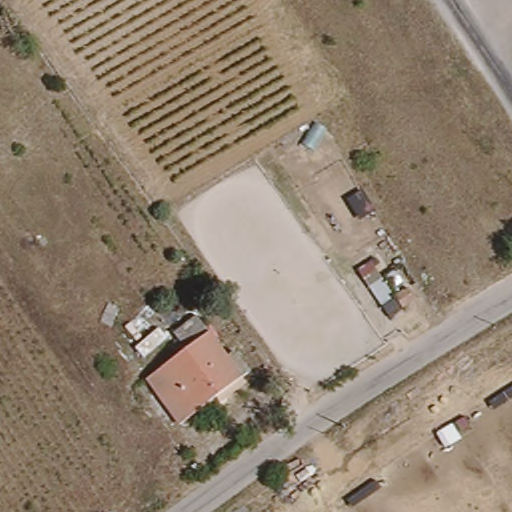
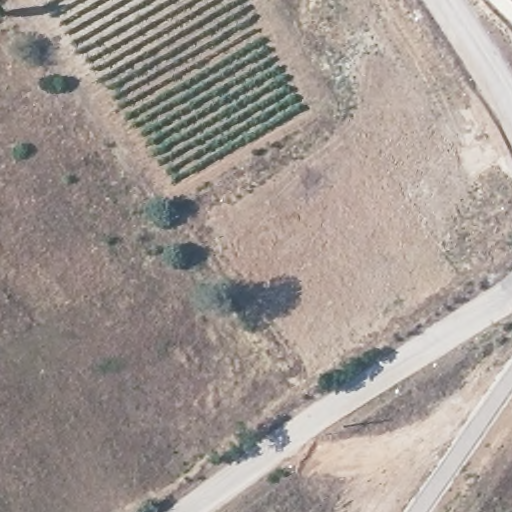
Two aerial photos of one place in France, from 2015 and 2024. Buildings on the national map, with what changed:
demolished [(421,301),(405,313),(395,294),(411,288),(421,301)]
demolished [(236,361),(241,357),(255,377),(223,400),(221,396),(186,422),(180,415),(153,377),(191,348),(179,332),(203,315),(236,361)]

